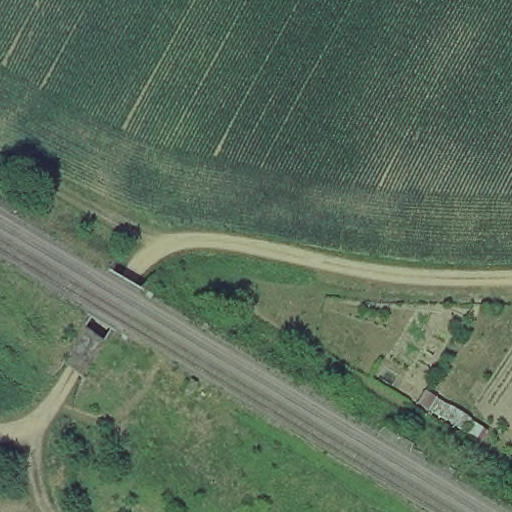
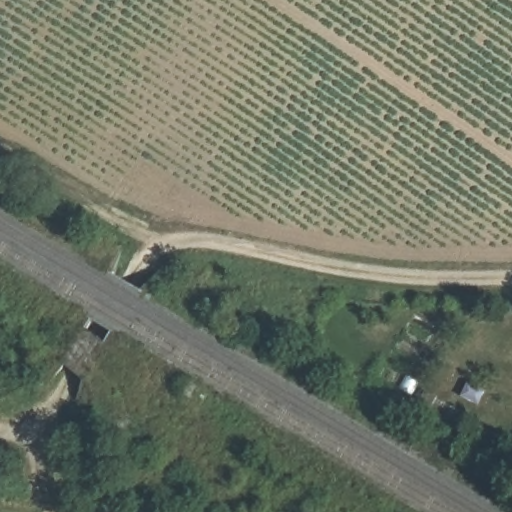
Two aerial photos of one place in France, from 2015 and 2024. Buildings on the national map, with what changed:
unchanged [(454,432),(414,408),(425,389),(467,414),(454,432)]

